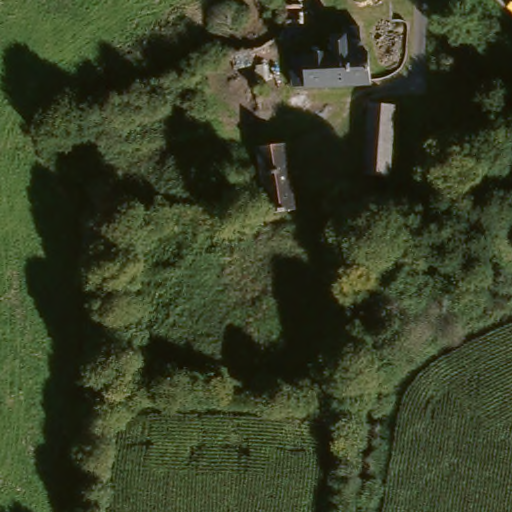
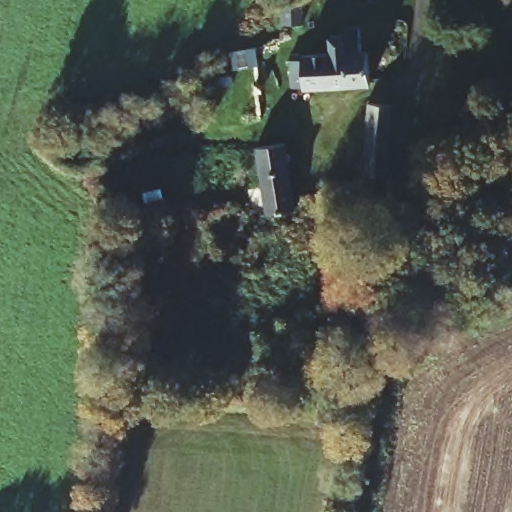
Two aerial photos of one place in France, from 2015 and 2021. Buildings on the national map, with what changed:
unchanged [(288,89),(288,64),(300,65),(300,56),(367,56),(367,89),(288,89)]
unchanged [(383,181),(368,179),(359,179),(364,109),(370,110),(388,111),(383,181)]
unchanged [(251,154),(263,152),(280,149),(288,206),(290,218),(262,222),(261,222),(251,154)]

